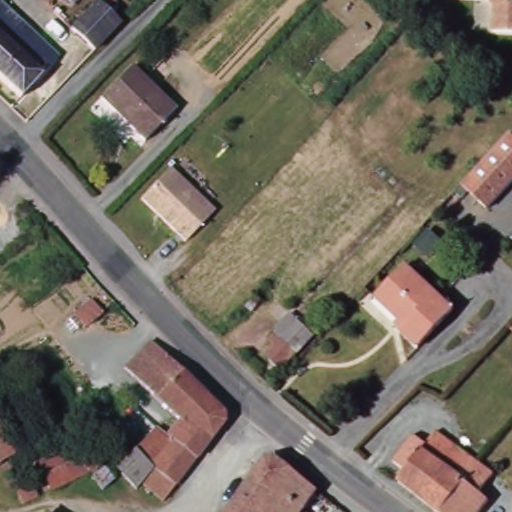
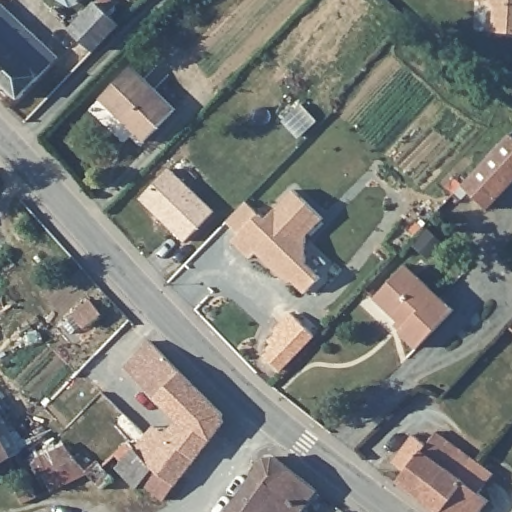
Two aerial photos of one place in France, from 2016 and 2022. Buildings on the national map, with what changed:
unchanged [(501,1),(500,0),(512,0),(512,25),(498,25),(501,1)]
unchanged [(2,74),(0,73),(0,1),(39,37),(2,74)]
unchanged [(106,34),(103,37),(91,49),(70,30),(94,5),(116,24),(106,34)]
unchanged [(62,58),(26,96),(2,74),(39,37),(62,58)]
unchanged [(139,146),(97,101),(131,68),(172,111),(139,146)]
unchanged [(512,189),(489,212),(462,187),(511,136),(512,137),(512,189)]
unchanged [(166,162),(212,204),(184,235),(138,194),(166,162)]
new [(218,220),(237,199),(251,211),(257,216),(285,185),(315,212),(298,231),(300,258),(315,272),(301,288),(286,276),(283,280),(250,250),(244,256),(225,240),(232,232),(218,220)]
unchanged [(418,347),(393,325),(396,320),(374,299),(392,282),(407,267),(453,311),(418,347)]
unchanged [(71,296),(89,282),(98,294),(80,308),(71,296)]
unchanged [(312,335),(281,365),(270,353),(287,336),(281,329),(292,317),(297,322),(312,335)]
unchanged [(157,463),(134,437),(131,434),(142,427),(150,437),(160,430),(167,438),(173,433),(170,428),(180,415),(151,385),(134,368),(155,342),(171,358),(232,417),(179,483),(157,463)]
unchanged [(493,472),(479,492),(487,498),(478,508),(476,512),(441,512),(398,478),(407,466),(397,457),(420,427),(431,436),(435,431),(450,442),(479,462),(493,472)]
unchanged [(105,487),(101,482),(90,467),(62,481),(60,482),(55,485),(36,451),(65,436),(79,453),(91,445),(102,458),(117,477),(105,487)]
unchanged [(146,478),(140,486),(126,474),(124,455),(120,451),(134,437),(157,463),(179,483),(174,490),(167,498),(146,478)]
unchanged [(12,462),(12,463),(0,469),(0,439),(12,462)]
unchanged [(261,472),(274,454),(326,492),(312,510),(261,472)]
unchanged [(261,472),(312,510),(310,512),(230,512),(261,472)]
unchanged [(18,484),(27,480),(36,476),(42,491),(34,495),(25,499),(18,484)]

